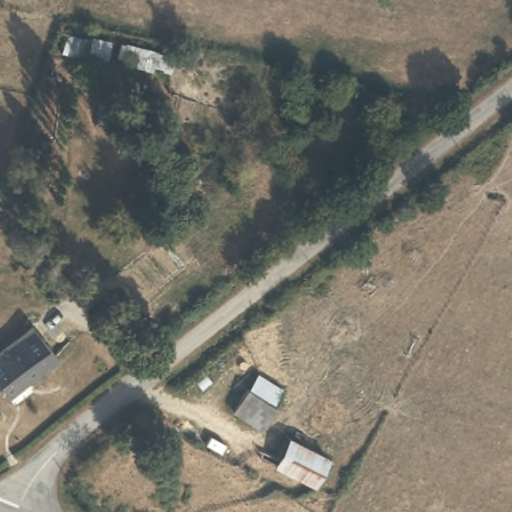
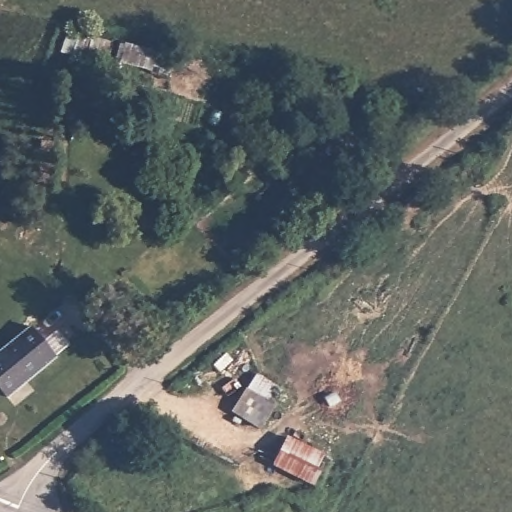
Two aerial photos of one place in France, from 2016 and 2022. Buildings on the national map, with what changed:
unchanged [(109,48),(105,73),(83,66),(89,40),(109,48)]
unchanged [(164,61),(158,79),(120,69),(124,49),(164,61)]
unchanged [(2,405),(0,402),(0,354),(26,334),(51,366),(2,405)]
unchanged [(261,426),(233,407),(247,388),(275,406),(261,426)]
unchanged [(271,473),(283,447),(320,465),(308,490),(271,473)]

